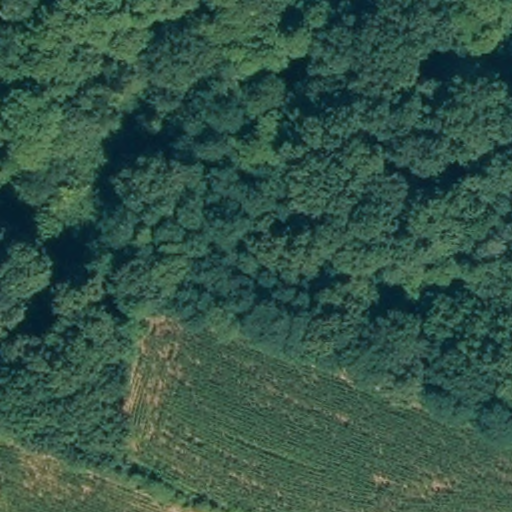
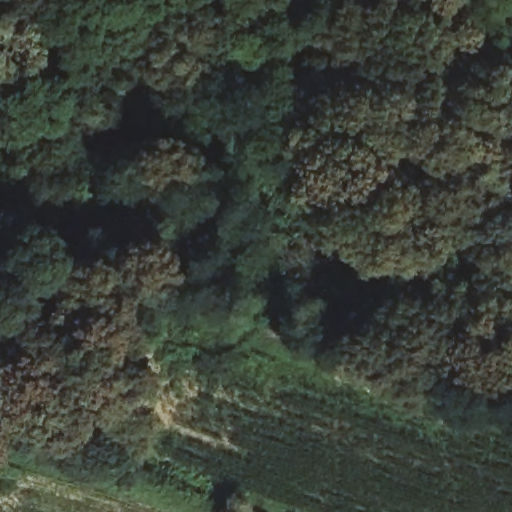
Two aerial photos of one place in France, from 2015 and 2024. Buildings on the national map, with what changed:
[]

